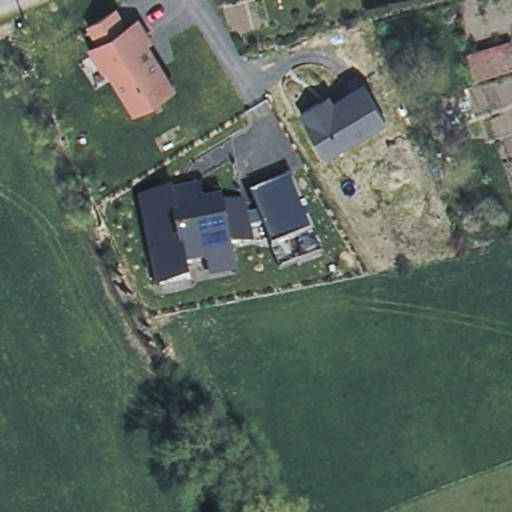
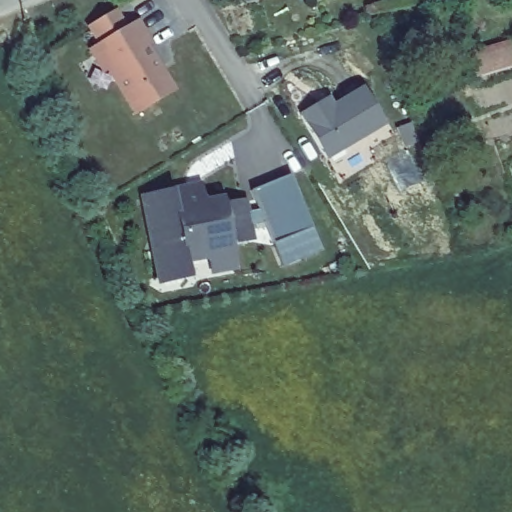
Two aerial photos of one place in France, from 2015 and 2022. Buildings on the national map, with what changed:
unchanged [(137,22),(176,92),(130,122),(87,50),(137,22)]
unchanged [(512,38),(512,64),(479,74),(472,49),(512,38)]
unchanged [(330,98),(333,105),(365,86),(388,125),(326,161),(300,117),(330,98)]
unchanged [(291,178),(311,230),(269,247),(260,225),(251,227),(255,244),(232,246),(237,271),(210,277),(206,260),(187,263),(190,284),(153,288),(140,197),(175,191),(176,199),(222,193),(223,206),(247,200),(248,212),(255,211),(250,194),(291,178)]

